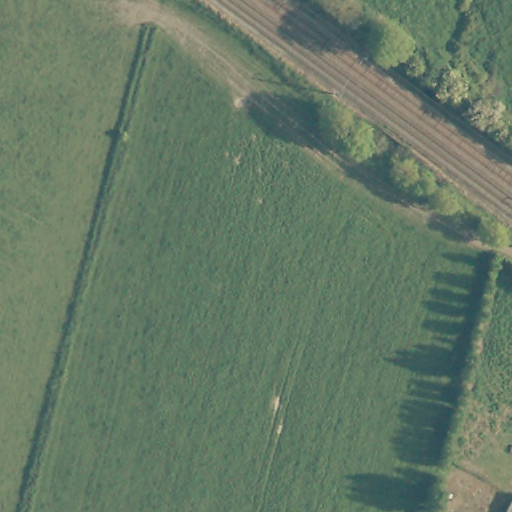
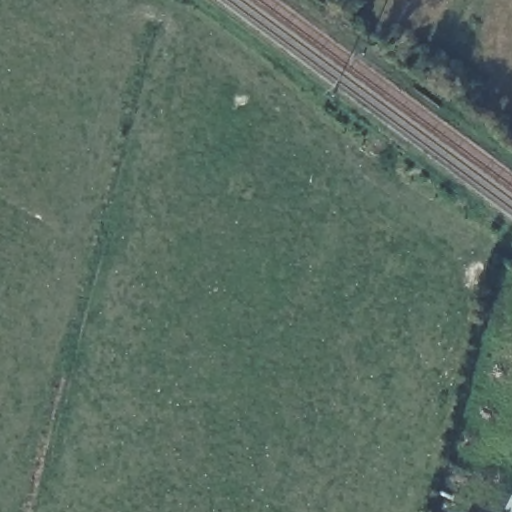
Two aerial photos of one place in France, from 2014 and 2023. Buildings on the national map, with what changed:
unchanged [(512,512),(508,512),(512,504),(512,512)]

